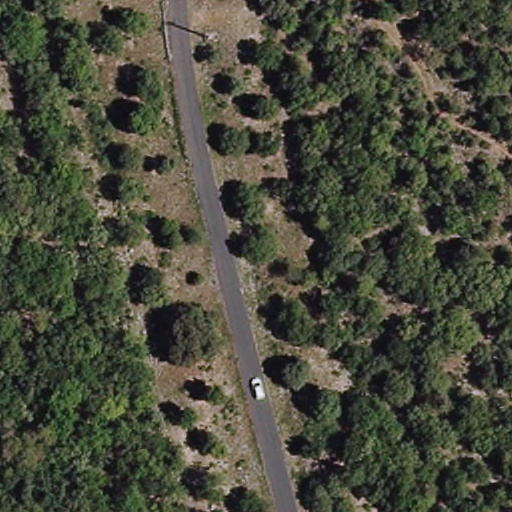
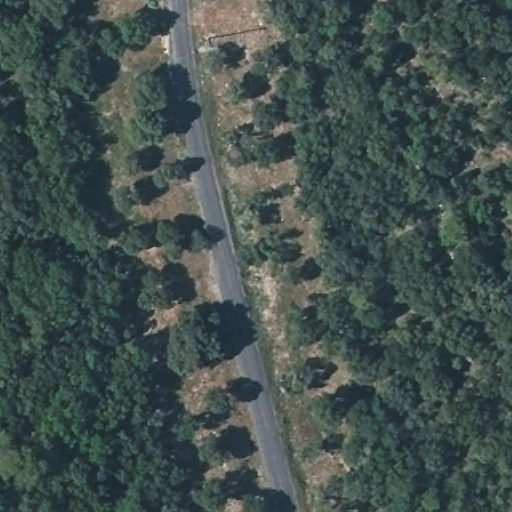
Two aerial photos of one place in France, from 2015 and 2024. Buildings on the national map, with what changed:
[]

